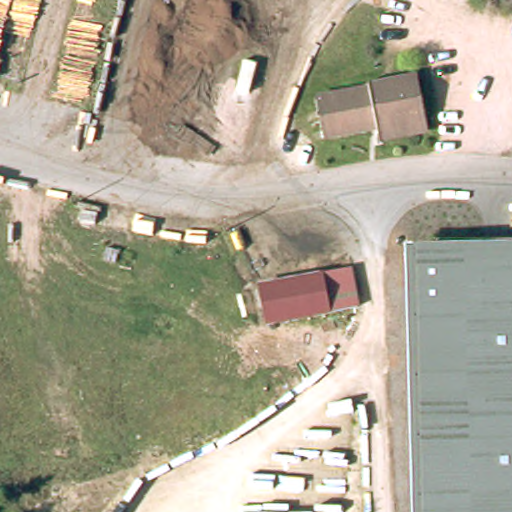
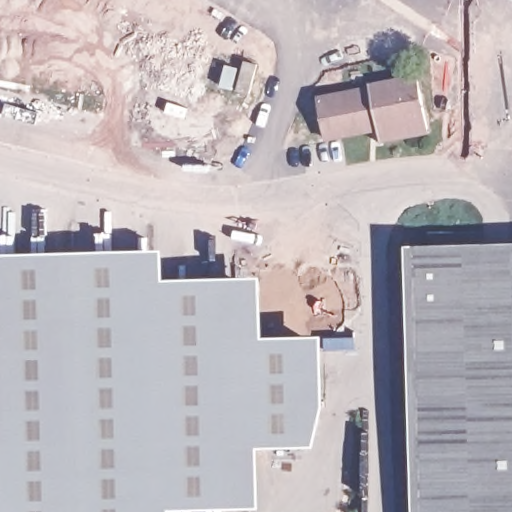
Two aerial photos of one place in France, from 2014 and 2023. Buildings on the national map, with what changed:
unchanged [(367,84),(366,80),(415,71),(426,128),(377,137),(374,124),(322,134),(314,95),(367,84)]
unchanged [(512,245),(512,512),(413,512),(408,248),(512,245)]
new [(163,249),(165,279),(262,276),(263,337),(322,335),(325,402),(315,446),(258,449),(260,508),(170,511),(170,512),(0,512),(0,254),(163,249)]
unchanged [(282,325),(274,286),(334,274),(334,276),(345,274),(352,309),(342,312),(342,313),(282,325)]

